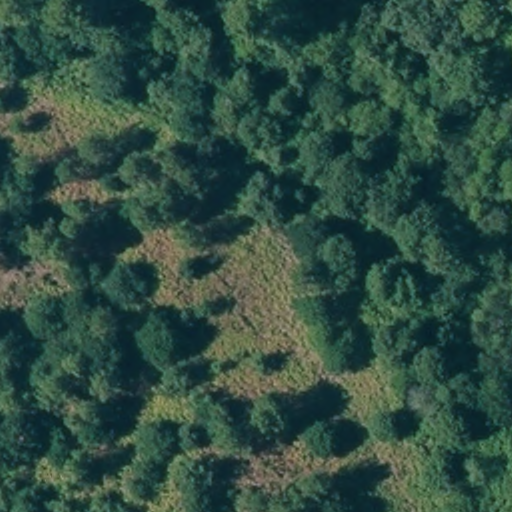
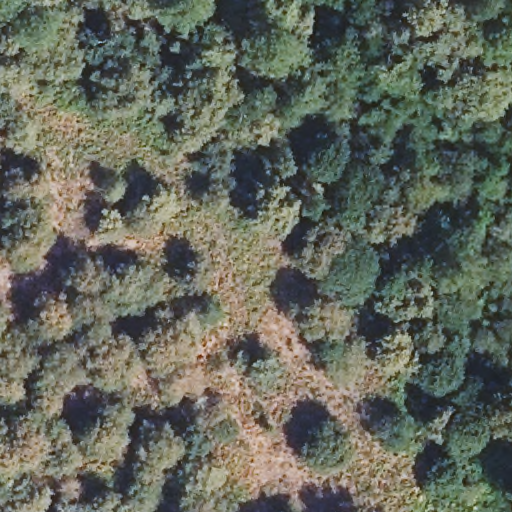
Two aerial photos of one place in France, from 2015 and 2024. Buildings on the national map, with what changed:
[]

